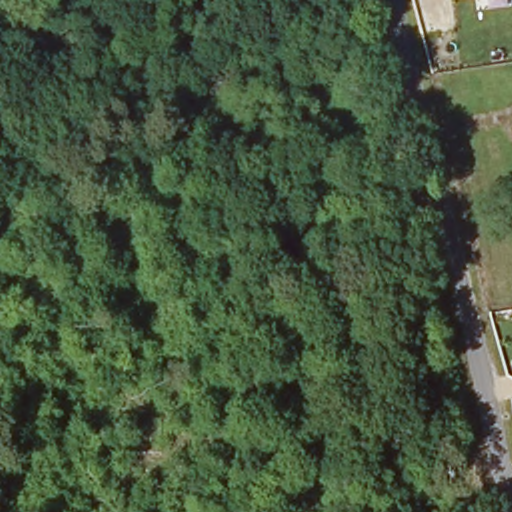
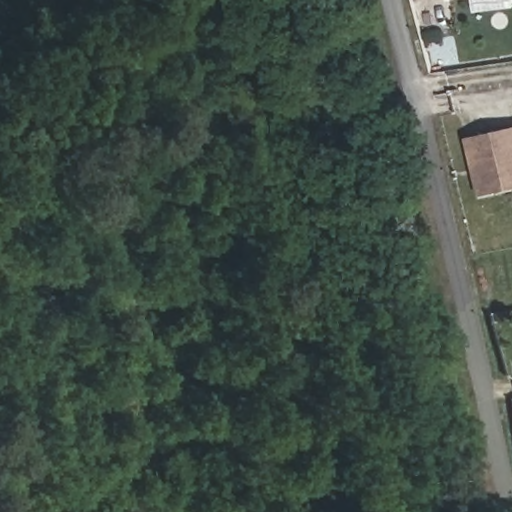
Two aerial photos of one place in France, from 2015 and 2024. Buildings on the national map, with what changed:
new [(512,129),(512,186),(478,194),(466,140),(512,129)]

